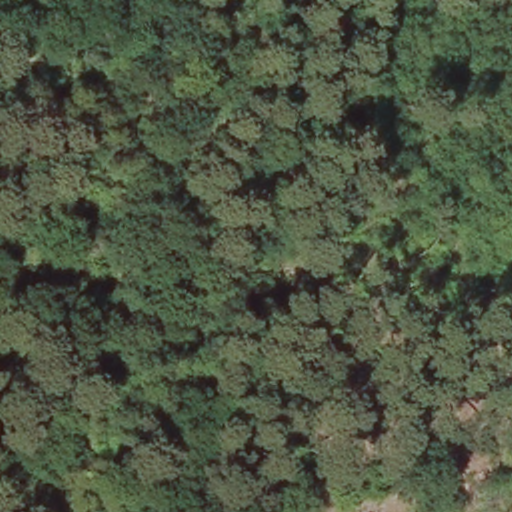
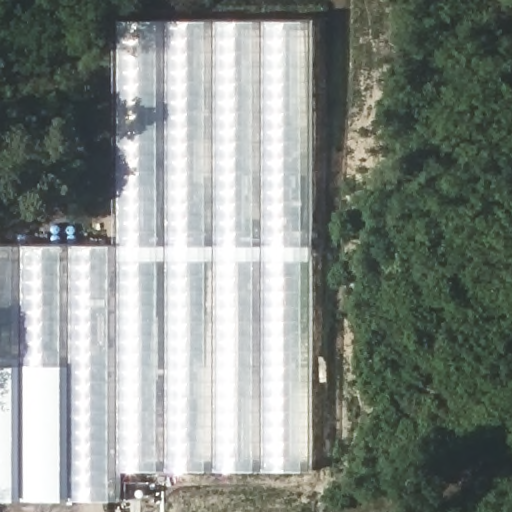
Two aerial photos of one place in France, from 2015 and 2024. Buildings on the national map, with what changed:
new [(120,500),(0,500),(0,244),(115,244),(115,19),(313,19),(315,470),(120,471),(120,500)]

